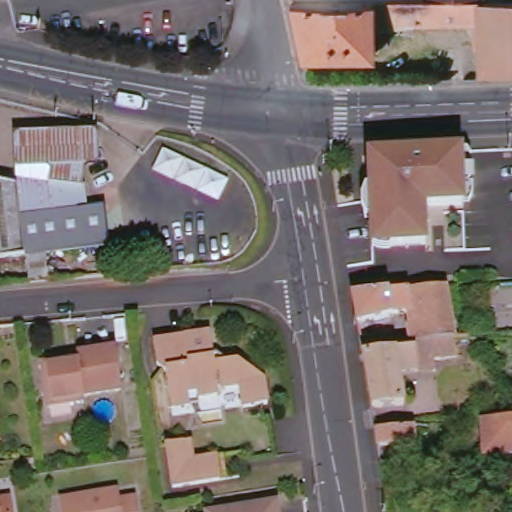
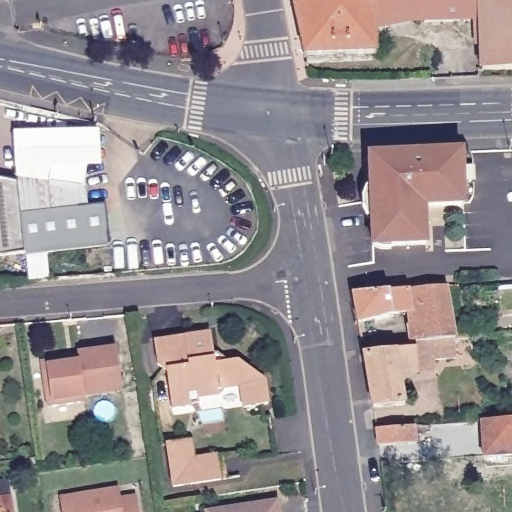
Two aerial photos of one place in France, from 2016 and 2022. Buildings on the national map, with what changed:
unchanged [(376,52),(304,54),(293,0),(374,0),(375,27),(376,52)]
unchanged [(470,19),(450,20),(413,21),(375,27),(374,0),(480,0),(480,19),(470,19)]
unchanged [(480,0),(512,0),(512,68),(482,70),(480,19),(480,0)]
unchanged [(46,247),(49,275),(31,276),(28,246),(0,249),(0,173),(20,177),(20,171),(19,165),(19,154),(18,136),(84,142),(87,162),(89,180),(92,202),(107,201),(112,239),(46,247)]
unchanged [(372,242),(372,238),(370,213),(367,213),(362,206),(360,191),(365,184),(370,184),(369,162),(368,152),(377,152),(404,151),(404,155),(423,155),(423,150),(462,149),(466,149),(474,159),(474,166),(472,166),(468,167),(474,172),(474,180),(469,185),(474,185),(474,192),(467,202),(463,202),(432,204),(420,193),(414,199),(425,211),(427,241),(390,242),(390,247),(383,248),(372,242)]
unchanged [(413,347),(410,347),(407,328),(410,329),(408,315),(356,330),(351,299),(457,291),(468,342),(453,343),(455,363),(433,365),(434,376),(416,377),(398,378),(400,388),(402,397),(405,408),(370,412),(362,358),(414,353),(413,347)]
unchanged [(242,383),(220,386),(221,392),(191,397),(192,402),(172,405),(167,366),(161,362),(157,337),(213,330),(217,354),(223,360),(242,357),(267,377),(269,396),(270,400),(245,405),(244,400),(242,383)]
unchanged [(42,358),(65,356),(66,358),(78,357),(77,349),(117,344),(122,385),(84,391),(85,394),(48,400),(42,358)]
unchanged [(512,457),(485,458),(480,421),(512,419),(512,457)]
unchanged [(373,429),(413,427),(416,442),(377,445),(373,429)]
unchanged [(171,461),(220,454),(223,477),(174,483),(171,461)]
unchanged [(62,497),(120,488),(122,498),(138,496),(140,512),(64,512),(62,497)]
unchanged [(208,510),(280,499),(281,512),(208,512),(208,510)]
unchanged [(12,501),(13,512),(0,512),(0,502),(12,501)]

